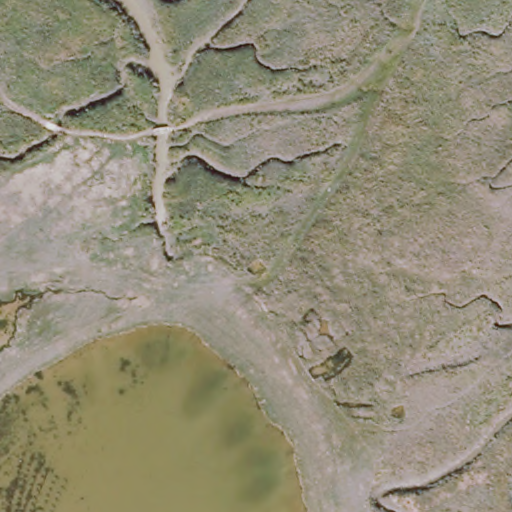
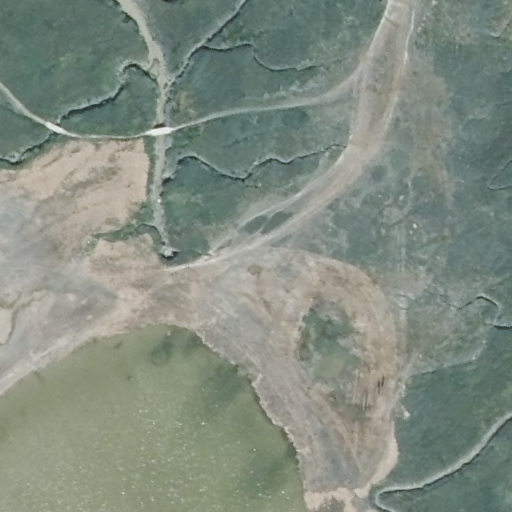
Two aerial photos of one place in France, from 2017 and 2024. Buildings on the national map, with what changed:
[]

